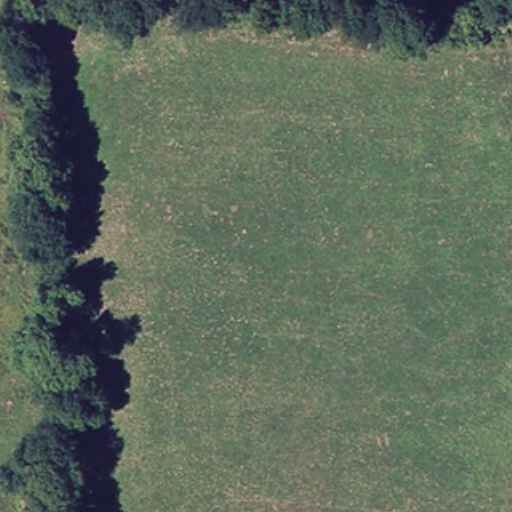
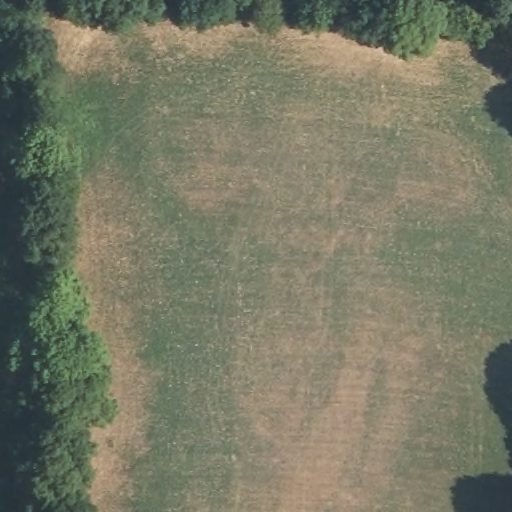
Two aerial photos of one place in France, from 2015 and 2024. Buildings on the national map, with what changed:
[]

